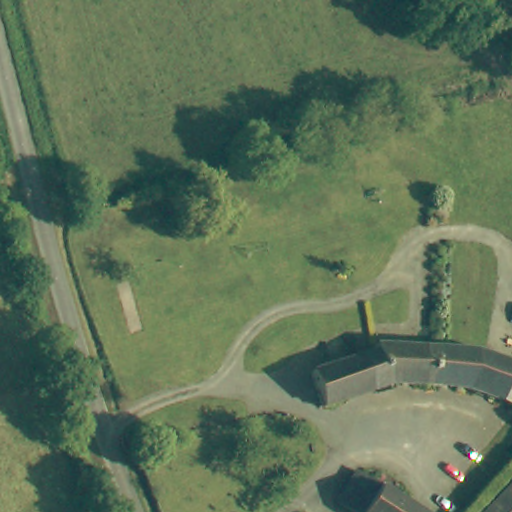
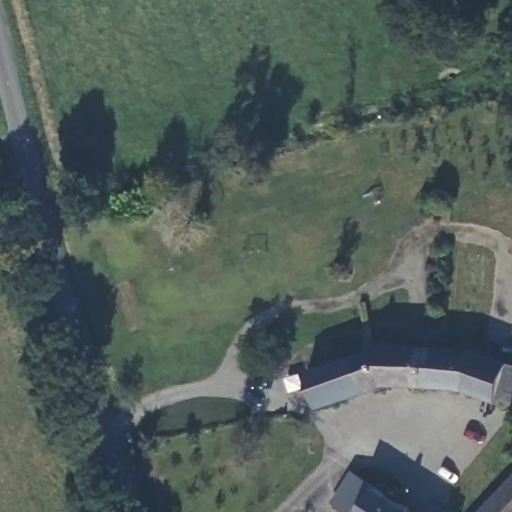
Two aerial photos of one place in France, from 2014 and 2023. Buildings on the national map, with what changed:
unchanged [(328,347),(347,341),(367,333),(369,337),(369,340),(373,350),(394,349),(422,349),(427,350),(450,351),(477,355),(494,360),(505,362),(512,365),(512,401),(467,385),(373,391),(321,409),(310,375),(336,368),(328,347)]
unchanged [(367,481),(415,512),(344,512),(367,481)]
unchanged [(512,484),(512,512),(488,512),(512,484)]

